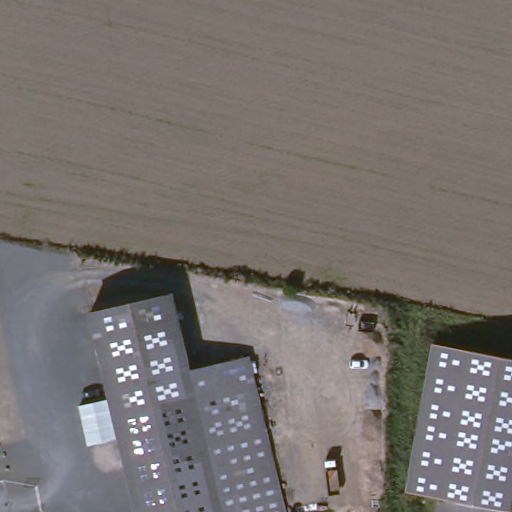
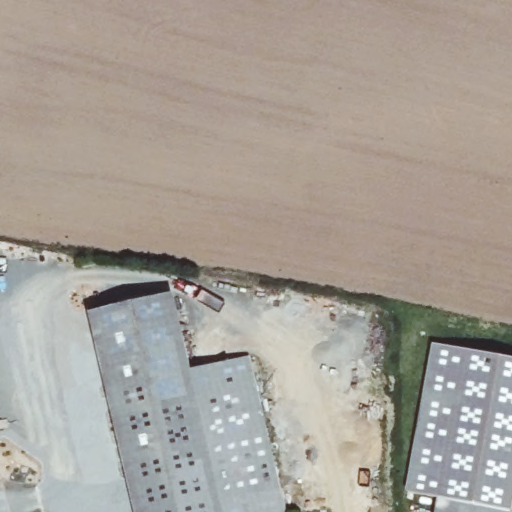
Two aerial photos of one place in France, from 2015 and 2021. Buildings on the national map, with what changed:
unchanged [(141,512),(86,315),(164,296),(183,371),(220,512),(141,512)]
unchanged [(442,512),(444,492),(406,485),(434,339),(512,353),(512,490),(509,512),(442,512)]
unchanged [(283,509),(269,512),(220,512),(183,371),(243,357),(283,509)]

